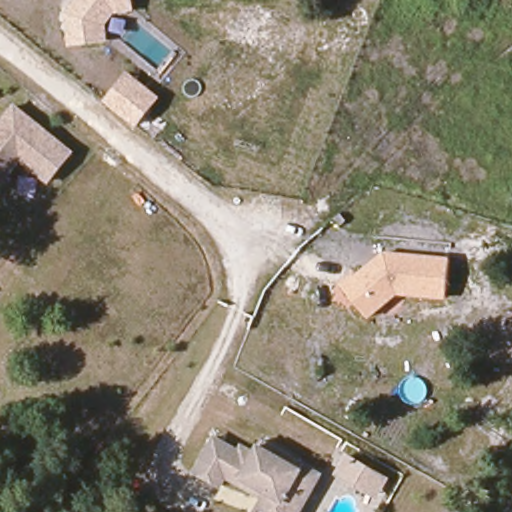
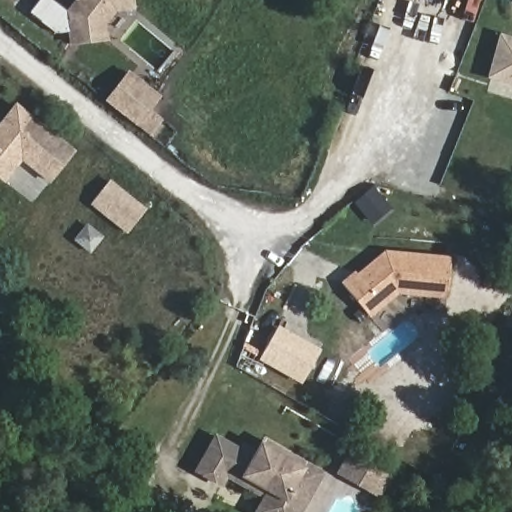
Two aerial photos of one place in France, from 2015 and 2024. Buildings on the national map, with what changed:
unchanged [(116,14),(108,25),(110,41),(70,47),(66,11),(75,0),(136,0),(138,11),(116,14)]
new [(487,79),(500,34),(512,38),(512,86),(487,79)]
unchanged [(105,100),(129,70),(161,95),(137,126),(105,100)]
unchanged [(24,163),(6,185),(0,181),(0,134),(21,109),(76,157),(50,187),(24,163)]
new [(91,205),(111,180),(148,209),(127,234),(91,205)]
unchanged [(447,299),(398,294),(369,318),(341,283),(386,251),(450,256),(447,299)]
new [(282,329),(325,352),(309,382),(266,359),(282,329)]
unchanged [(266,499),(229,476),(224,486),(199,472),(219,438),(243,452),(245,447),(259,453),(266,442),(309,468),(324,477),(315,493),(303,512),(258,512),(266,499)]
unchanged [(381,499),(337,475),(349,452),(392,476),(381,499)]

